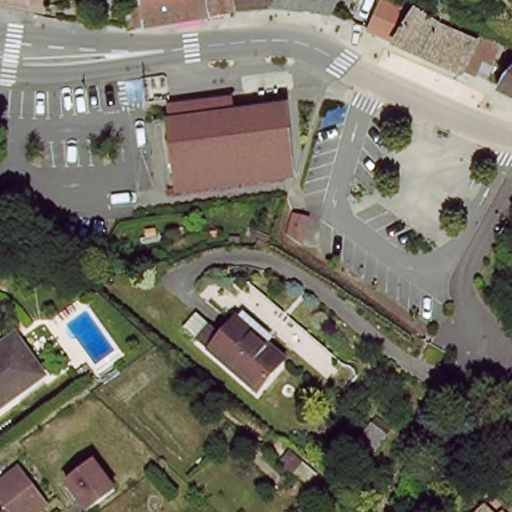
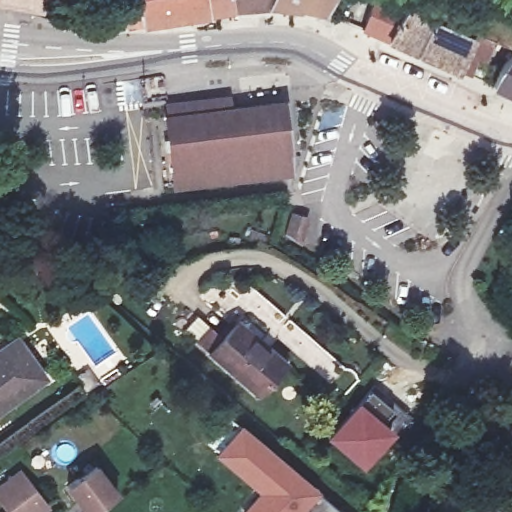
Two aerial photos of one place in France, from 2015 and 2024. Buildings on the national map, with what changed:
unchanged [(50,10),(0,3),(0,0),(51,0),(50,10)]
unchanged [(236,10),(223,11),(134,29),(131,28),(129,3),(148,2),(147,0),(234,0),(236,10)]
unchanged [(279,4),(236,10),(234,0),(280,0),(279,4)]
unchanged [(280,0),(342,0),(333,16),(322,12),(279,4),(280,0)]
unchanged [(428,52),(398,40),(419,0),(423,0),(447,16),(428,52)]
unchanged [(447,16),(485,35),(470,70),(439,57),(428,52),(447,16)]
unchanged [(509,75),(512,73),(512,101),(500,96),(509,75)]
unchanged [(170,157),(169,149),(165,118),(168,117),(166,106),(223,98),(224,110),(269,104),(277,103),(281,142),(283,151),(285,174),(278,174),(277,175),(174,189),(170,157)]
unchanged [(258,349),(266,343),(286,361),(254,398),(204,353),(231,323),(258,349)]
unchanged [(42,381),(0,409),(0,349),(13,340),(42,381)]
new [(370,387),(410,415),(362,468),(325,437),(370,387)]
new [(323,491),(320,493),(343,512),(243,512),(259,491),(216,455),(245,423),(323,491)]
unchanged [(95,512),(88,512),(69,486),(93,469),(115,497),(95,512)]
unchanged [(0,499),(0,489),(24,472),(47,504),(35,512),(2,512),(7,509),(0,499)]
demolished [(488,512),(484,512),(485,510),(488,512)]

